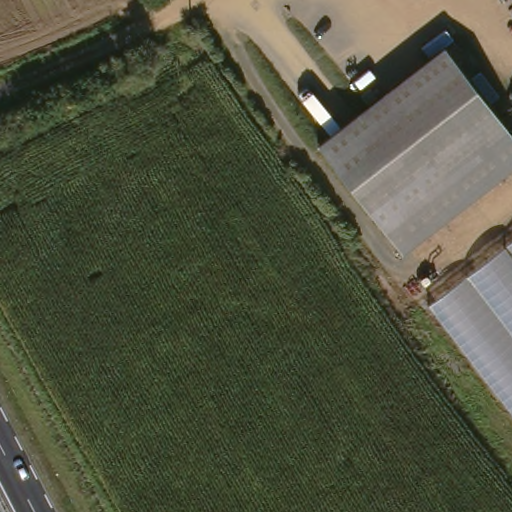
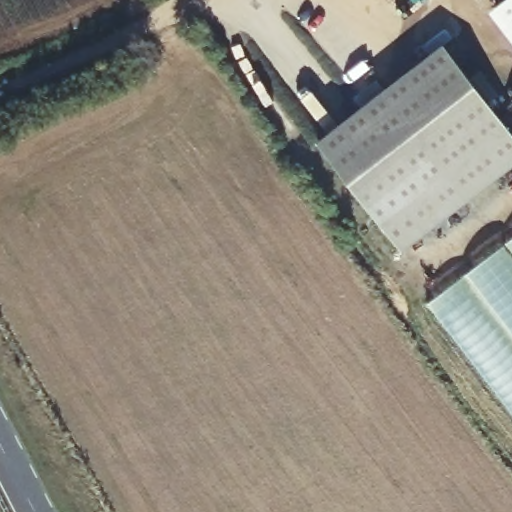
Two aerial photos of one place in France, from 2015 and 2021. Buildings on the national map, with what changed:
new [(512,0),(512,36),(492,11),(507,0),(512,0)]
unchanged [(324,148),(450,48),(512,126),(386,226),(324,148)]
unchanged [(512,127),(512,171),(408,253),(386,226),(512,126),(512,127)]
unchanged [(512,241),(512,409),(430,307),(512,241)]

